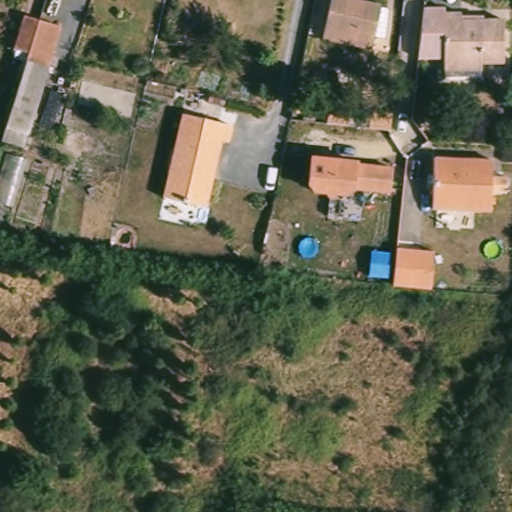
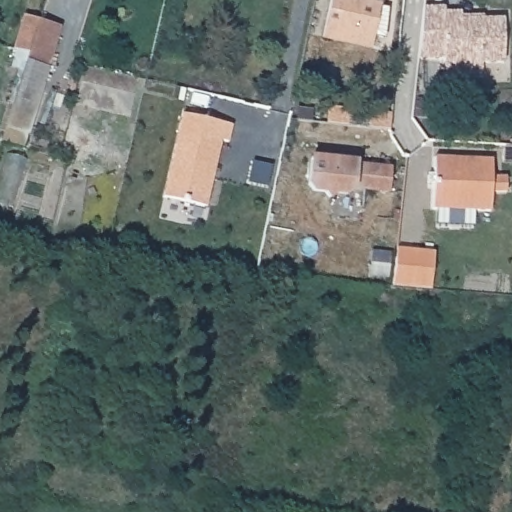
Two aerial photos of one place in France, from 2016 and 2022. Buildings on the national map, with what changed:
unchanged [(329,28),(335,0),(364,0),(385,5),(377,39),(375,49),(326,38),(329,28)]
unchanged [(443,77),(443,64),(442,13),(460,12),(460,20),(502,19),(502,64),(480,64),(480,77),(443,77)]
unchanged [(23,152),(1,145),(28,60),(7,55),(19,19),(39,25),(60,31),(23,152)]
unchanged [(223,126),(232,127),(230,144),(220,141),(206,208),(162,198),(180,116),(223,126)]
unchanged [(387,190),(352,186),(352,187),(350,191),(339,190),(332,195),(327,189),(311,187),(307,182),(310,156),(355,161),(355,162),(390,166),(387,190)]
unchanged [(490,161),(490,178),(505,178),(505,196),(490,196),(490,212),(432,212),(433,160),(490,161)]
unchanged [(433,251),(428,287),(391,282),(395,246),(433,251)]

